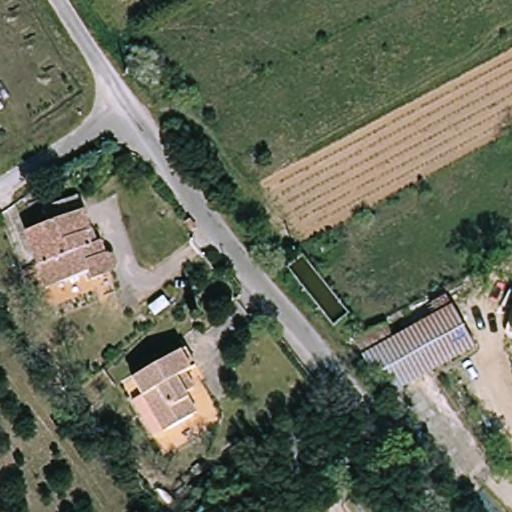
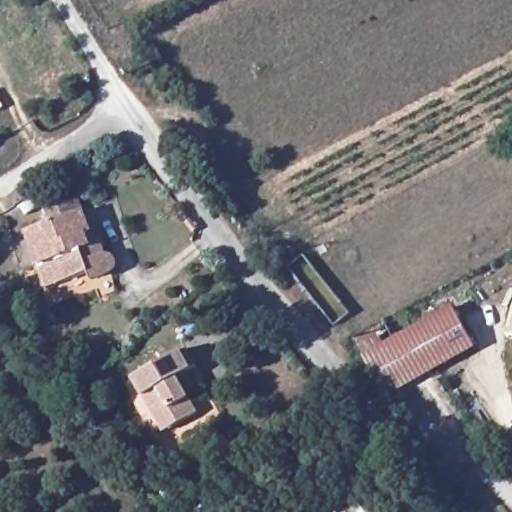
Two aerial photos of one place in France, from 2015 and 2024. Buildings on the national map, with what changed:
unchanged [(46,270),(31,235),(54,225),(47,209),(80,195),(98,244),(105,242),(110,257),(120,259),(124,262),(126,268),(123,273),(97,285),(93,275),(68,287),(54,292),(46,270)]
unchanged [(477,347),(389,396),(358,339),(390,321),(399,336),(454,304),(477,347)]
unchanged [(512,326),(512,330),(511,330),(512,326)]
unchanged [(199,363),(188,370),(199,386),(185,395),(196,413),(168,430),(137,378),(189,347),(199,363)]

